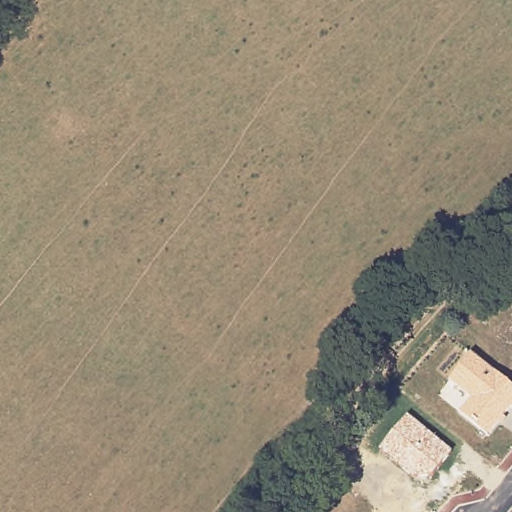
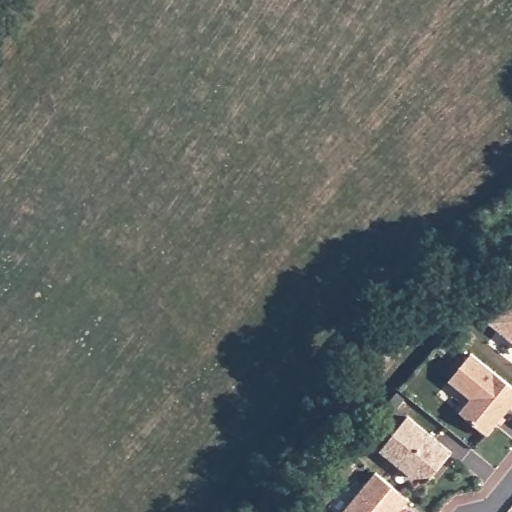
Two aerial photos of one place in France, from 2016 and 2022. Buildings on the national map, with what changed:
new [(512,293),(512,341),(487,320),(512,293)]
unchanged [(472,354),(512,387),(512,405),(486,435),(457,412),(469,399),(448,380),(472,354)]
unchanged [(428,475),(411,478),(380,450),(408,416),(450,451),(428,475)]
new [(399,512),(342,512),(375,472),(410,499),(399,512)]

